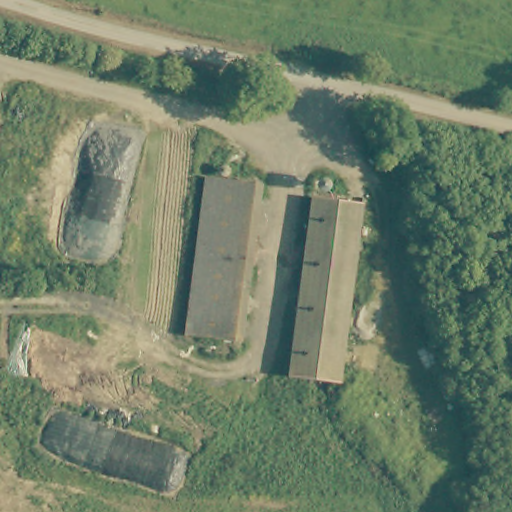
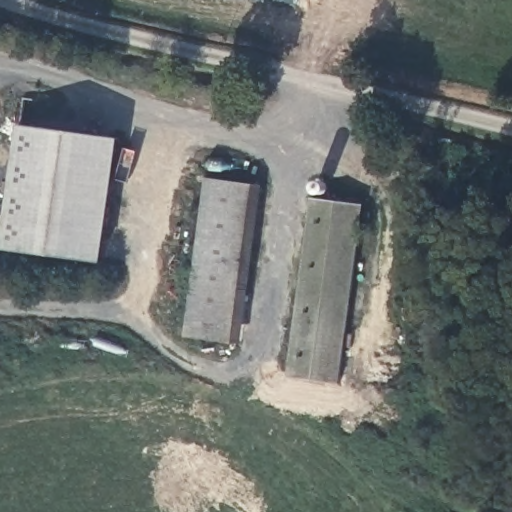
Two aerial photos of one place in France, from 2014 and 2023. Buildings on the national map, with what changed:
new [(104,263),(1,249),(17,126),(121,139),(104,263)]
unchanged [(258,185),(234,342),(187,335),(210,178),(258,185)]
unchanged [(365,200),(341,382),(290,374),(294,346),(315,193),(365,200)]

